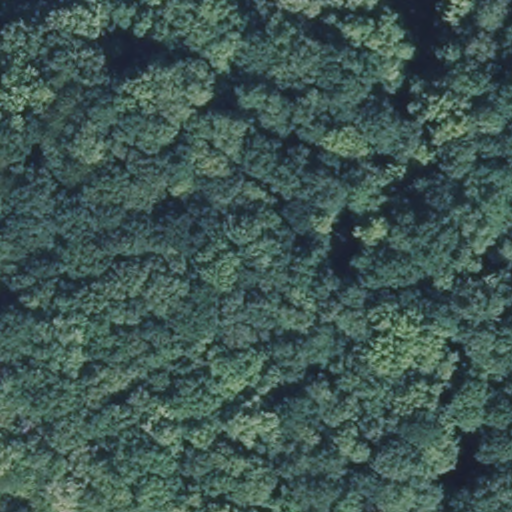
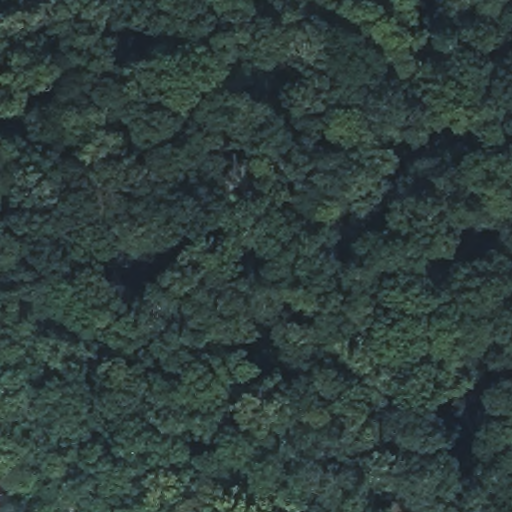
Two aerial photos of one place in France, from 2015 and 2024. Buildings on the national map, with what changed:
unchanged [(5,512),(0,512),(0,504),(5,512)]

